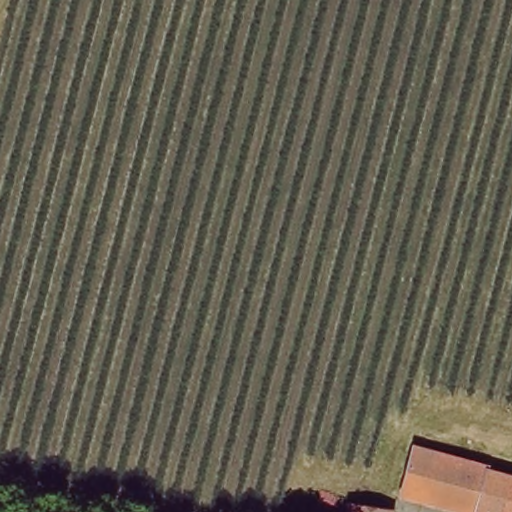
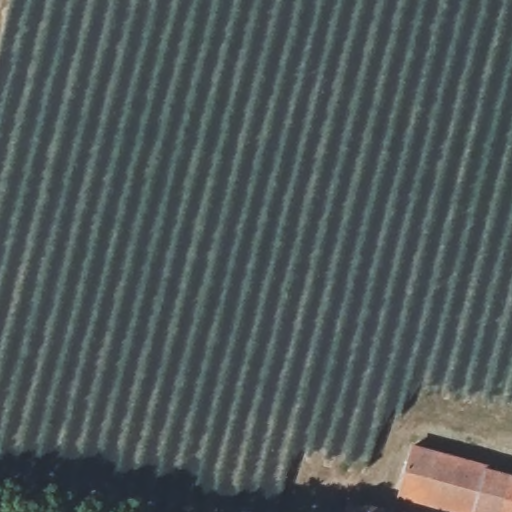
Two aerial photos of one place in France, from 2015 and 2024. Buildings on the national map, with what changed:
unchanged [(512,471),(512,512),(481,512),(401,493),(415,447),(512,471)]
unchanged [(397,512),(355,512),(357,500),(398,508),(397,512)]

